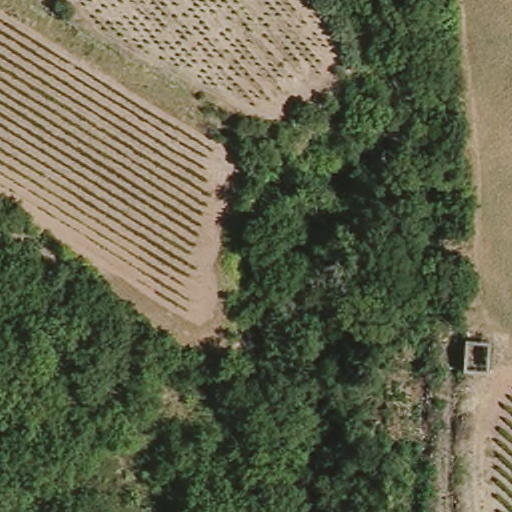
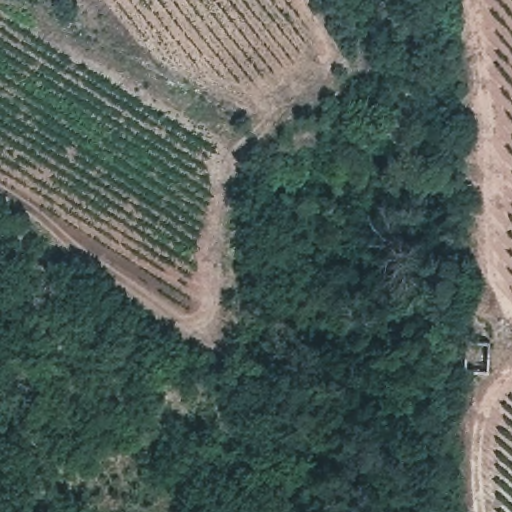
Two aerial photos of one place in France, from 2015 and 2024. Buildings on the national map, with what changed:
unchanged [(490,342),(489,368),(466,368),(467,341),(490,342)]

